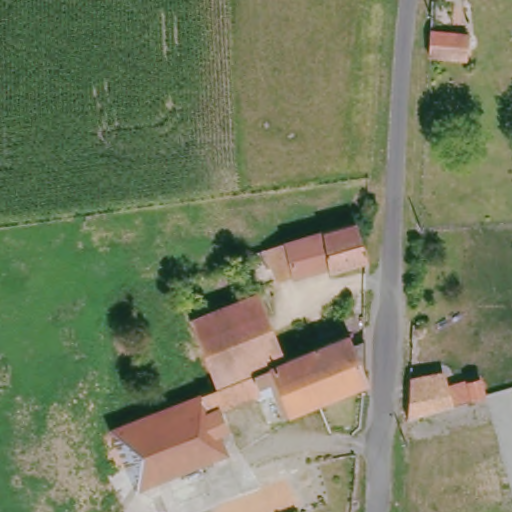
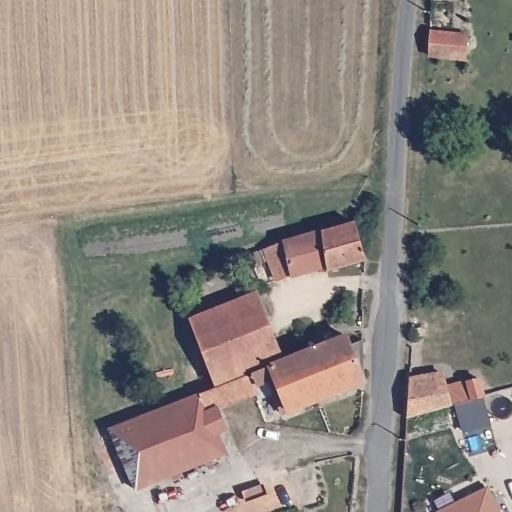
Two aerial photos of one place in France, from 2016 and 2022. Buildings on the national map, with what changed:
unchanged [(429,31),(468,32),(467,55),(428,54),(429,31)]
unchanged [(252,254),(270,248),(355,222),(368,260),(329,271),(327,266),(279,280),(261,285),(252,254)]
unchanged [(191,317),(254,295),(278,358),(216,383),(191,317)]
unchanged [(299,354),(347,336),(351,347),(363,342),(365,380),(317,401),(299,354)]
unchanged [(284,415),(275,392),(260,399),(254,387),(207,408),(225,453),(137,490),(112,430),(152,413),(199,395),(199,392),(299,354),(317,401),(284,415)]
unchanged [(408,374),(440,366),(447,381),(480,373),(485,392),(404,415),(408,374)]
new [(488,487),(500,512),(437,512),(488,487)]

